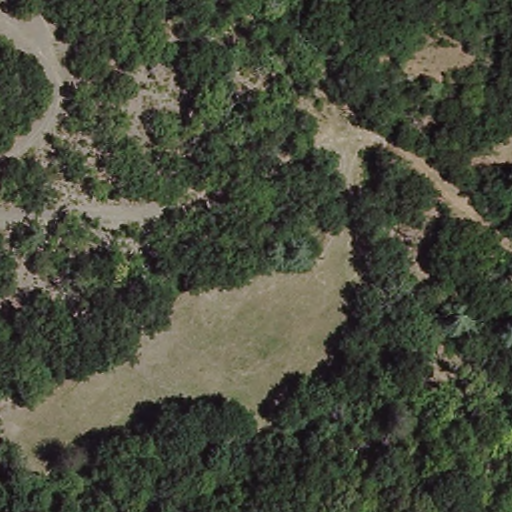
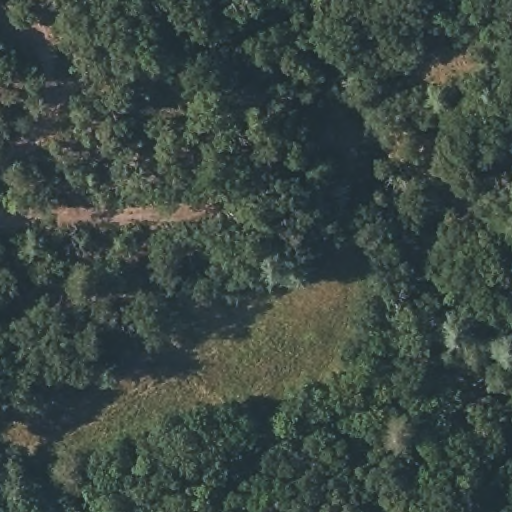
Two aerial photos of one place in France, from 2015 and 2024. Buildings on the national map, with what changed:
[]

